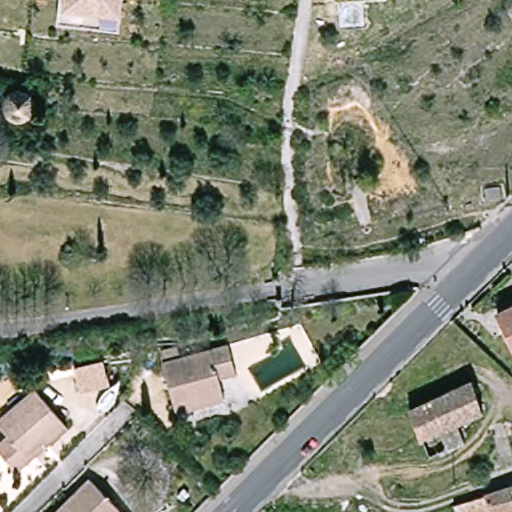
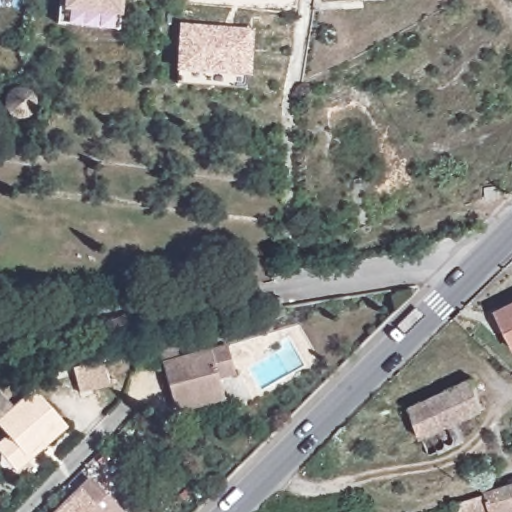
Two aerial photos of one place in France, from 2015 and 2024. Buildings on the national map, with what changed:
unchanged [(65,17),(66,0),(73,0),(72,3),(127,7),(127,22),(65,17)]
unchanged [(73,0),(128,0),(127,7),(72,3),(73,0)]
new [(175,71),(180,24),(255,29),(251,78),(175,71)]
unchanged [(27,101),(29,104),(30,107),(28,112),(26,115),(22,117),(18,117),(14,116),(11,112),(10,109),(10,105),(12,101),(15,99),(20,97),(23,98),(27,101)]
unchanged [(502,195),(503,209),(484,210),(484,196),(502,195)]
unchanged [(493,312),(512,303),(512,352),(493,312)]
unchanged [(180,411),(178,402),(168,346),(188,342),(191,356),(232,347),(236,362),(240,379),(224,382),(226,394),(227,402),(180,411)]
unchanged [(82,394),(78,367),(109,361),(112,387),(82,394)]
unchanged [(426,441),(412,405),(478,376),(489,408),(458,422),(467,443),(438,458),(426,441)]
unchanged [(23,471),(0,452),(12,437),(1,428),(32,390),(68,416),(49,440),(35,457),(23,471)]
unchanged [(94,478),(129,512),(60,512),(94,478)]
unchanged [(508,511),(504,512),(450,512),(448,507),(512,484),(512,512),(509,512),(508,511)]

